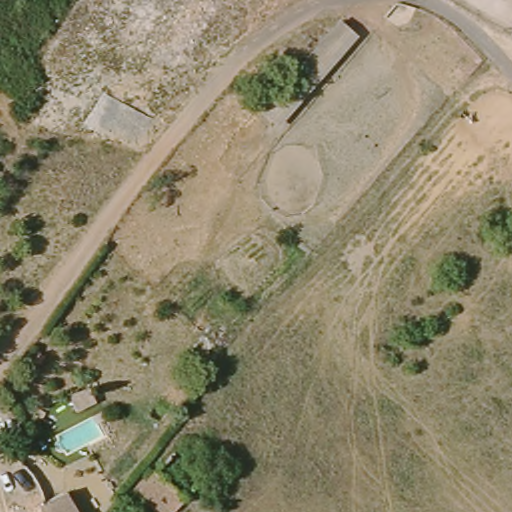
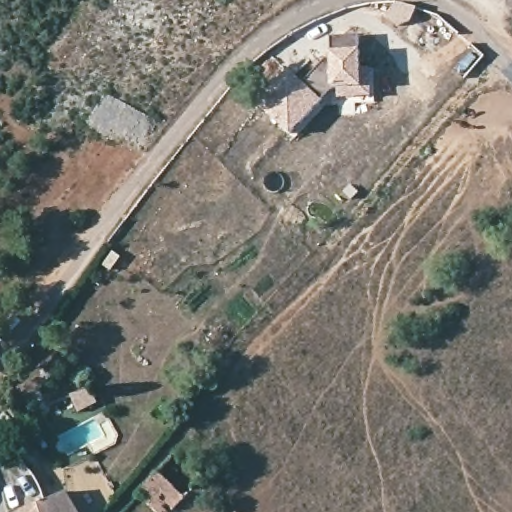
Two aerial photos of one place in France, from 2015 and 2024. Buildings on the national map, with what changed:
new [(305,83),(328,59),(330,61),(331,52),(332,36),(360,35),(360,51),(360,89),(332,90),(290,135),(257,102),(290,70),(305,83)]
unchanged [(95,388),(103,401),(83,411),(77,393),(95,388)]
unchanged [(135,490),(152,467),(186,490),(214,470),(239,489),(221,512),(161,512),(135,490)]
unchanged [(78,512),(16,512),(43,500),(56,495),(67,491),(78,512)]

